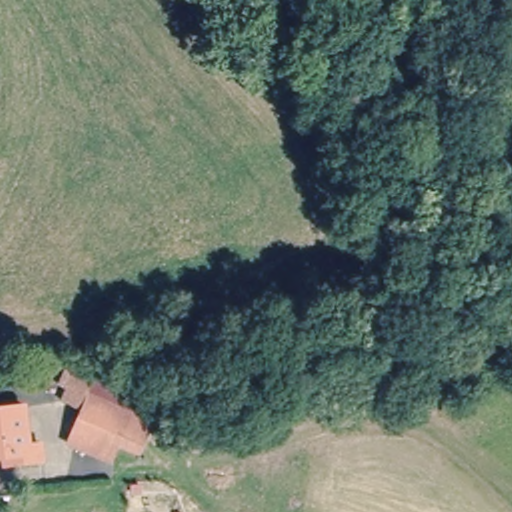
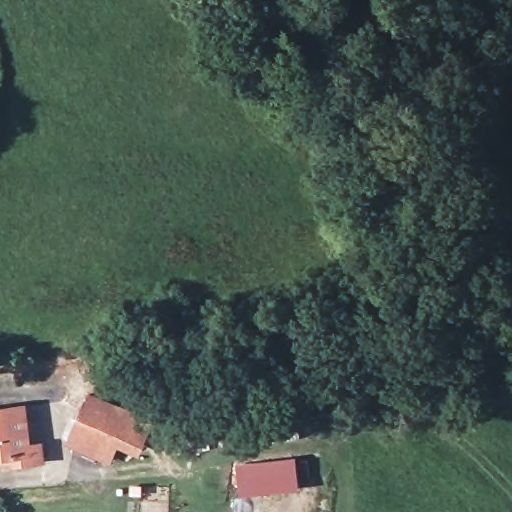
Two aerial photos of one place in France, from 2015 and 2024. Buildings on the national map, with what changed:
unchanged [(141,442),(121,434),(113,448),(76,432),(96,386),(154,412),(141,442)]
unchanged [(33,447),(44,446),(46,460),(10,464),(9,457),(0,458),(0,412),(27,408),(33,447)]
new [(297,457),(301,492),(239,498),(235,463),(297,457)]

